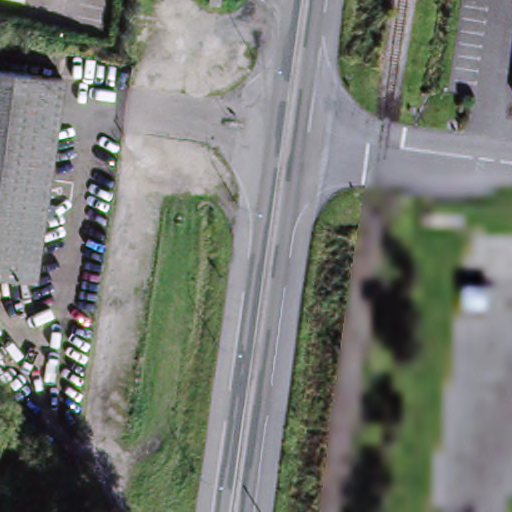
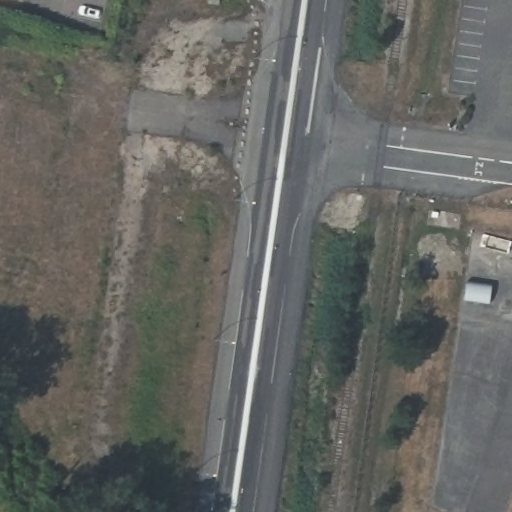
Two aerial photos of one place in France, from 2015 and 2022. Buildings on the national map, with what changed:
unchanged [(221,4),(231,5),(229,19),(219,18),(221,4)]
demolished [(55,80),(27,277),(0,273),(0,73),(55,80)]

